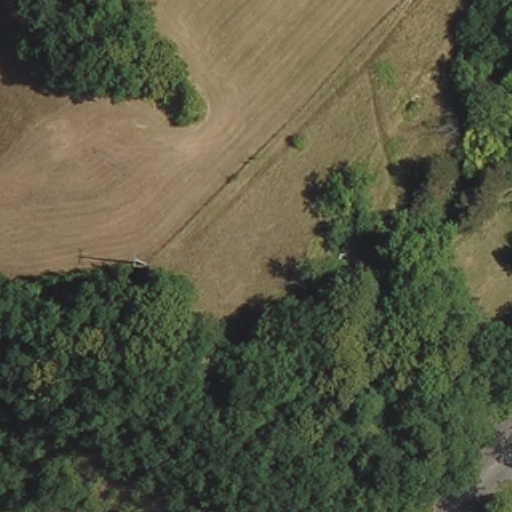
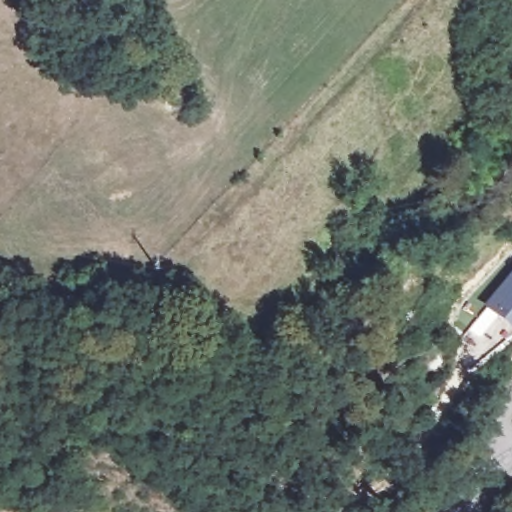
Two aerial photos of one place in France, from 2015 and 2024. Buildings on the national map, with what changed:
new [(512,331),(484,307),(512,275),(512,331)]

